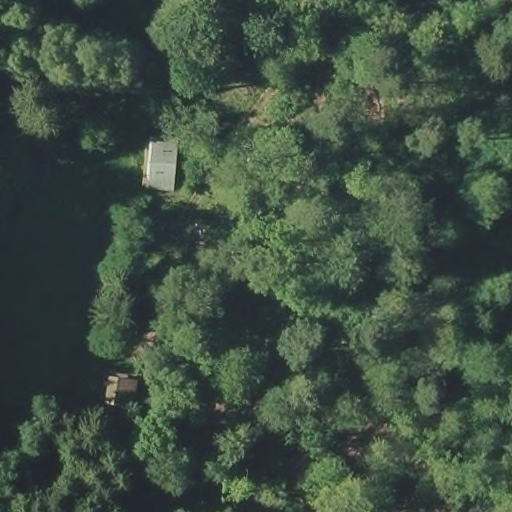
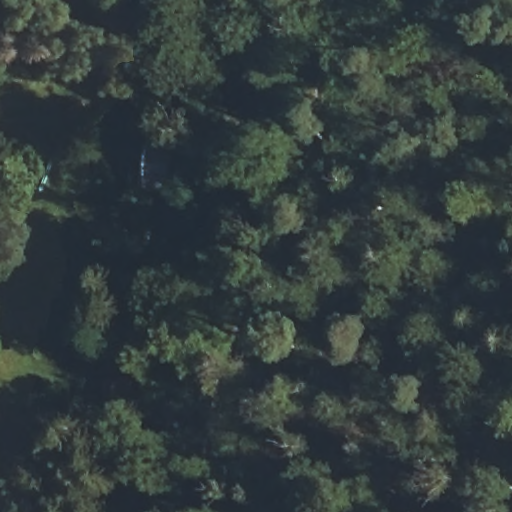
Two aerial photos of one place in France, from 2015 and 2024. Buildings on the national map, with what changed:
unchanged [(415,5),(390,1),(390,0),(415,0),(415,5)]
unchanged [(87,127),(66,126),(69,98),(92,99),(87,127)]
unchanged [(174,136),(171,186),(145,188),(146,135),(174,136)]

